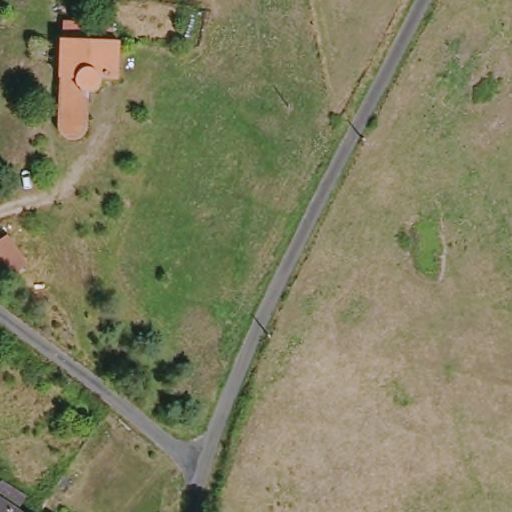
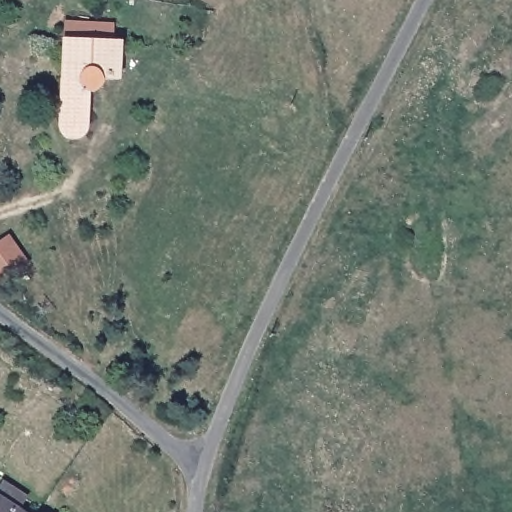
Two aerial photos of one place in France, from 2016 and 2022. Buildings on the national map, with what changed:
unchanged [(57,77),(57,47),(57,42),(77,41),(110,40),(111,75),(96,76),(57,77)]
unchanged [(96,76),(95,89),(92,91),(88,95),(81,96),(83,117),(82,122),(78,126),(75,127),(72,128),(69,128),(64,124),(59,113),(57,77),(96,76)]
unchanged [(28,265),(0,285),(0,243),(9,237),(28,265)]
unchanged [(24,510),(27,512),(0,512),(0,494),(24,510)]

